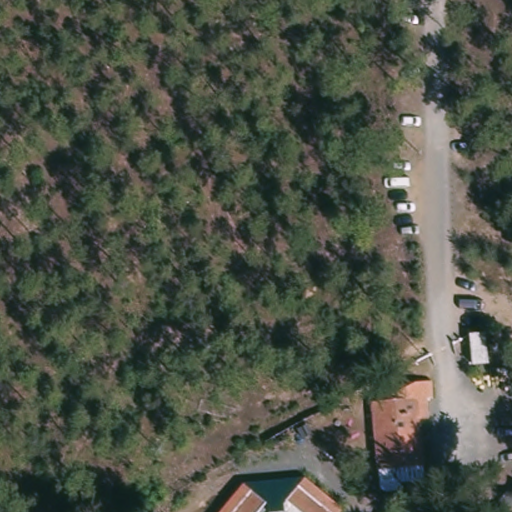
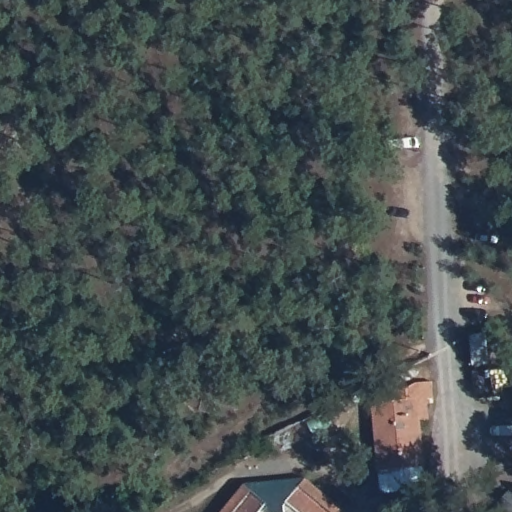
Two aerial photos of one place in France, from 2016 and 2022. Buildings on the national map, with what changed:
unchanged [(487,363),(472,364),(470,334),(485,332),(487,363)]
unchanged [(412,406),(422,484),(419,489),(399,491),(400,495),(396,499),(385,501),(380,498),(368,412),(377,411),(377,410),(409,391),(423,389),(426,404),(412,406)]
unchanged [(277,498),(289,479),(334,503),(329,512),(277,512),(283,501),(277,498)]
unchanged [(491,512),(492,507),(507,488),(512,487),(512,512),(491,512)]
unchanged [(255,511),(258,512),(232,512),(241,497),(258,506),(255,511)]

